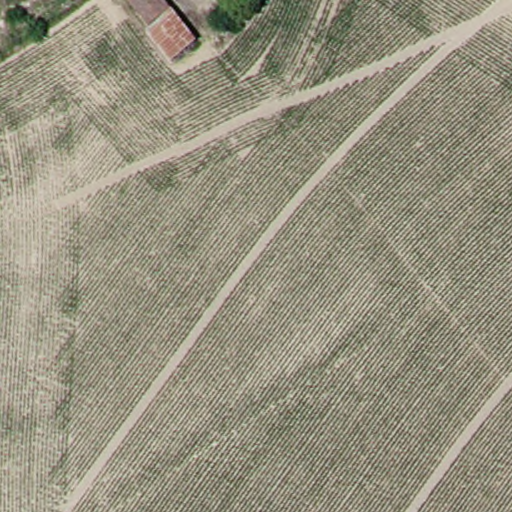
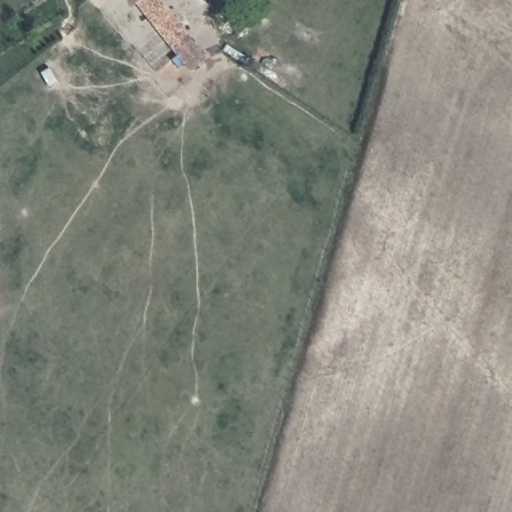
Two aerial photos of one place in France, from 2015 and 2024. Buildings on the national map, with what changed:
unchanged [(158,21),(143,0),(170,0),(176,9),(158,21)]
unchanged [(180,60),(160,37),(157,40),(151,30),(158,21),(176,9),(203,43),(180,60)]

